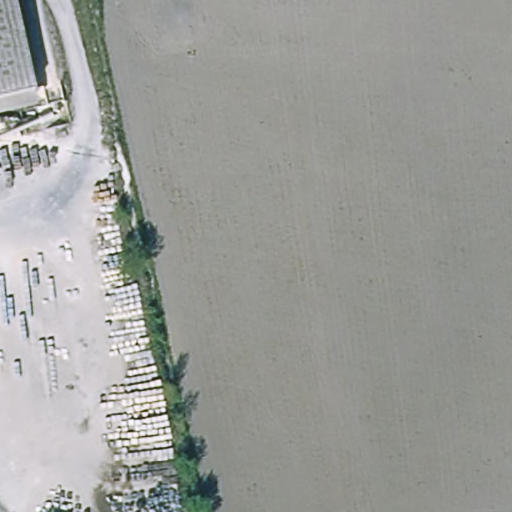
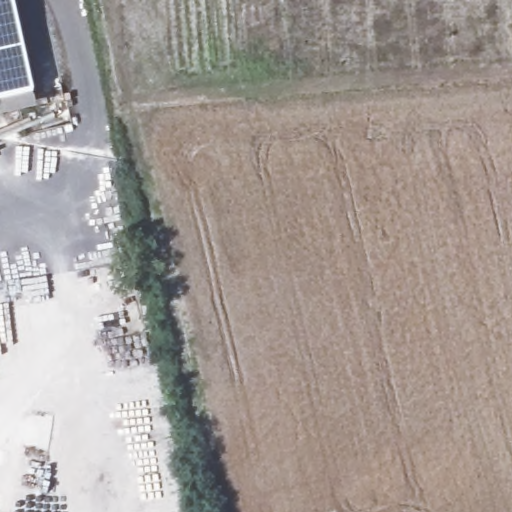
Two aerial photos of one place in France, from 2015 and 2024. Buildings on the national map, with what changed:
unchanged [(0,97),(0,0),(17,0),(38,89),(0,97)]

